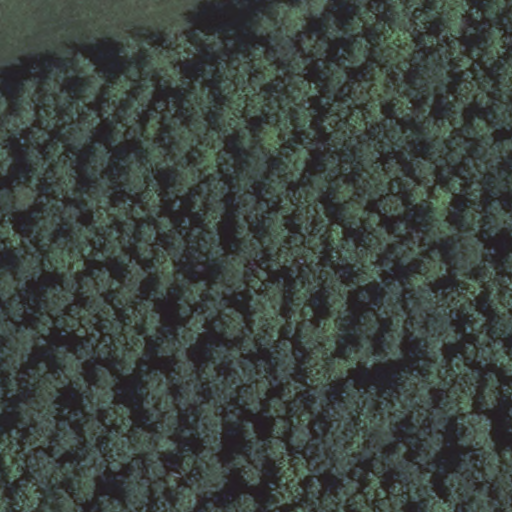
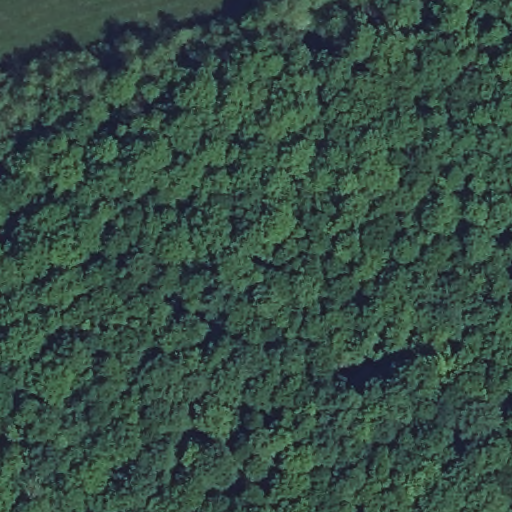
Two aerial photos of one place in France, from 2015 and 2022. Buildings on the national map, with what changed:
[]

